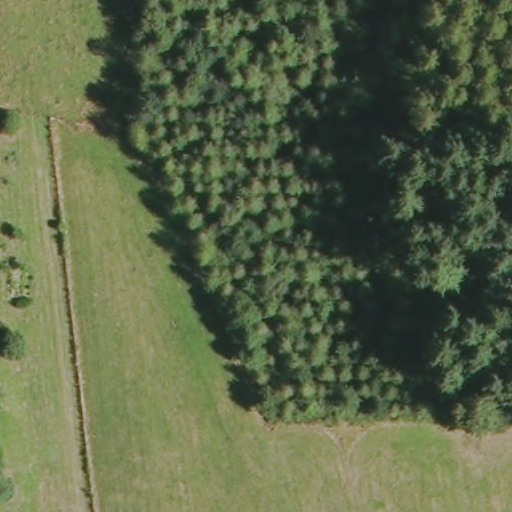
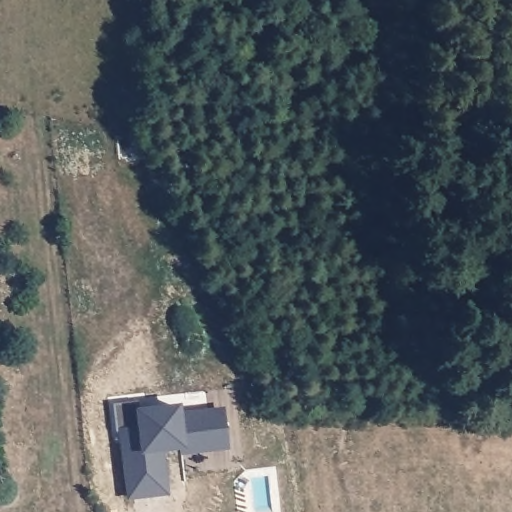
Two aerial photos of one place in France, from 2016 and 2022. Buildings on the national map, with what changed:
new [(167,457),(171,496),(126,500),(120,429),(137,427),(135,409),(181,404),(181,412),(225,406),(229,449),(167,457)]

